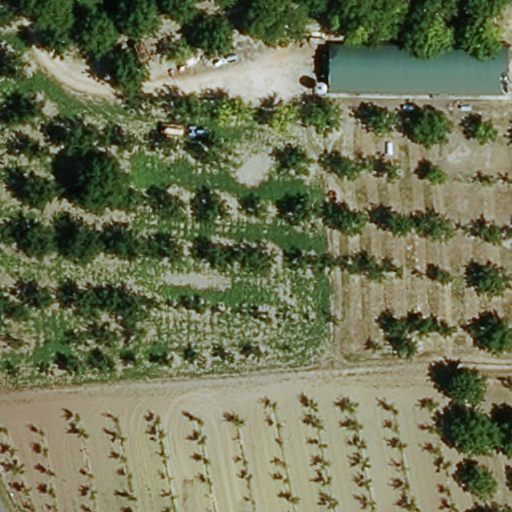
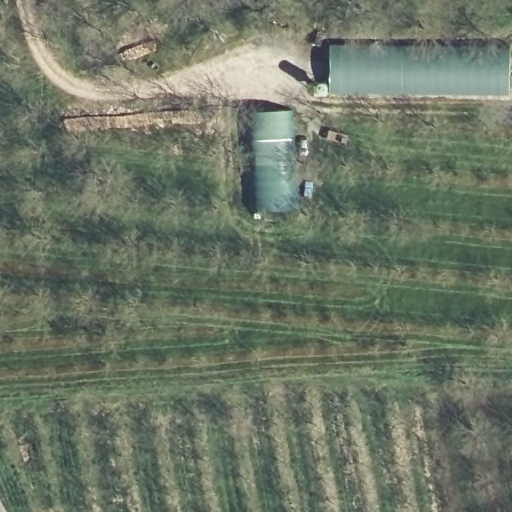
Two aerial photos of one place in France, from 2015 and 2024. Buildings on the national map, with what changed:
unchanged [(330,44),(511,47),(510,96),(331,95),(330,44)]
new [(294,215),(258,217),(253,112),(293,110),(294,215)]

